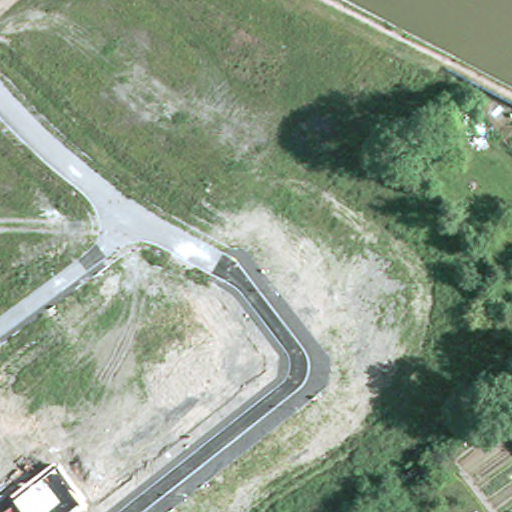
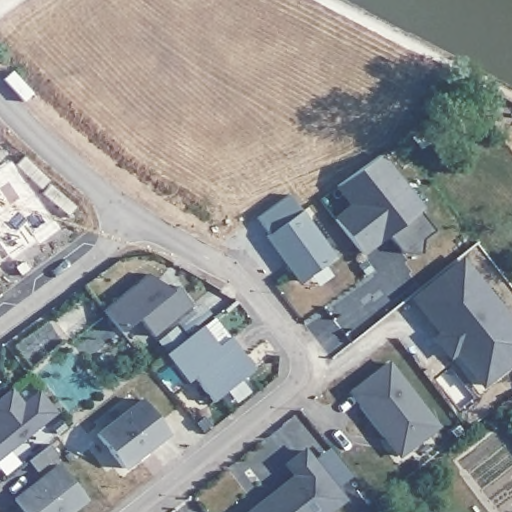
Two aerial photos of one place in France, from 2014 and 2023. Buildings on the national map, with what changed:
new [(363,256),(334,216),(349,205),(336,188),(381,155),(421,209),(420,210),(435,229),(422,239),(422,253),(400,252),(389,235),(363,256)]
new [(336,257),(297,284),(265,236),(303,210),(336,257)]
new [(465,261),(512,321),(512,343),(510,345),(512,348),(512,363),(484,384),(457,351),(451,356),(437,338),(443,334),(416,299),(465,261)]
new [(141,318),(121,333),(103,310),(152,274),(170,292),(178,285),(192,309),(154,337),(141,318)]
new [(230,337),(255,368),(240,380),(248,392),(235,401),(227,390),(213,401),(196,379),(187,384),(165,354),(202,326),(217,345),(230,337)]
new [(352,392),(391,362),(440,426),(401,455),(391,442),(387,437),(352,392)]
new [(38,390),(57,414),(0,458),(0,398),(11,389),(23,403),(38,390)]
new [(169,436),(124,469),(95,432),(140,399),(169,436)]
new [(304,449),(346,501),(332,512),(244,512),(290,476),(282,464),(304,449)]
unchanged [(85,500),(69,512),(26,512),(12,494),(56,463),(85,500)]

